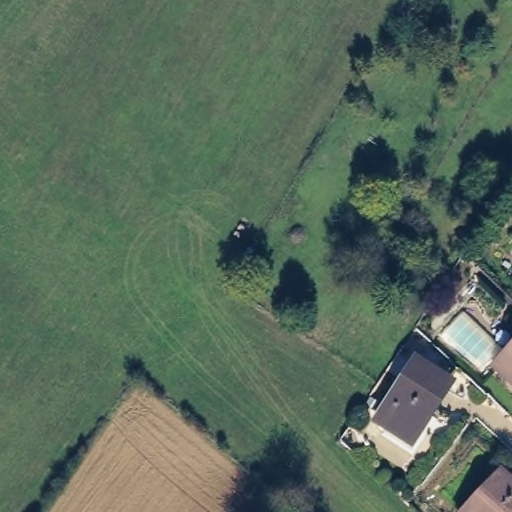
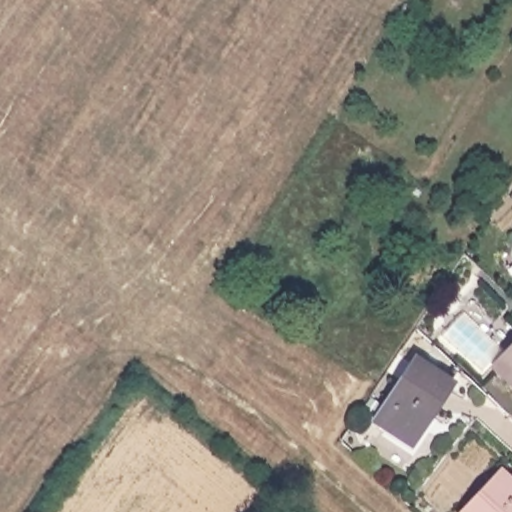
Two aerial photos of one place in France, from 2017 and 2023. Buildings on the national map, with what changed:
unchanged [(488,368),(512,342),(512,390),(488,368)]
unchanged [(414,354),(449,377),(409,435),(376,411),(414,354)]
unchanged [(502,468),(512,478),(512,512),(459,512),(502,468)]

